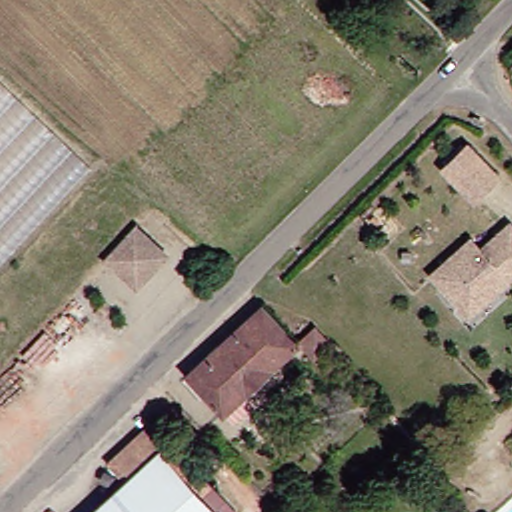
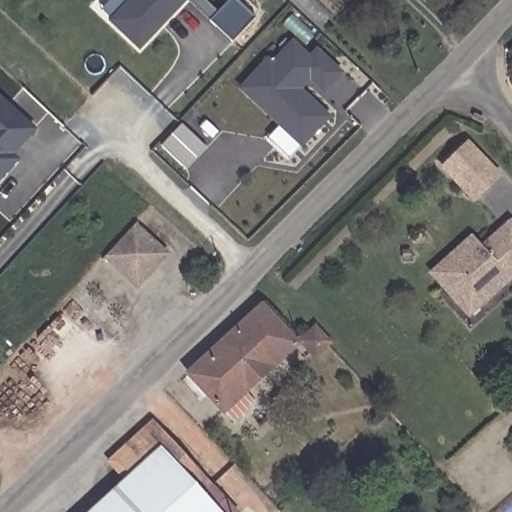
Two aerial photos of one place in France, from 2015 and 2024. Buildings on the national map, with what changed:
new [(112,21),(112,20),(102,9),(110,0),(124,0),(127,4),(131,0),(184,0),(140,47),(112,21)]
new [(235,42),(212,21),(190,0),(206,0),(219,13),(230,0),(240,0),(258,17),(235,42)]
new [(274,61),(295,39),(312,55),(319,46),(344,76),(327,95),(307,71),(297,81),(332,120),(305,149),(242,86),(270,56),(274,61)]
demolished [(0,259),(0,76),(92,161),(0,259)]
new [(7,146),(13,151),(0,166),(0,94),(30,121),(7,146)]
unchanged [(442,168),(467,144),(497,175),(472,199),(442,168)]
unchanged [(458,303),(431,273),(471,238),(480,249),(508,223),(512,227),(512,274),(480,303),(468,314),(458,303)]
unchanged [(127,286),(124,282),(96,256),(125,225),(152,250),(156,254),(127,286)]
unchanged [(234,419),(223,408),(222,408),(187,370),(252,310),(287,348),(244,388),(255,400),(234,419)]
unchanged [(318,318),(333,337),(327,342),(313,352),(298,334),(318,318)]
unchanged [(138,469),(126,455),(167,415),(212,465),(218,473),(205,485),(229,512),(94,512),(138,469)]

